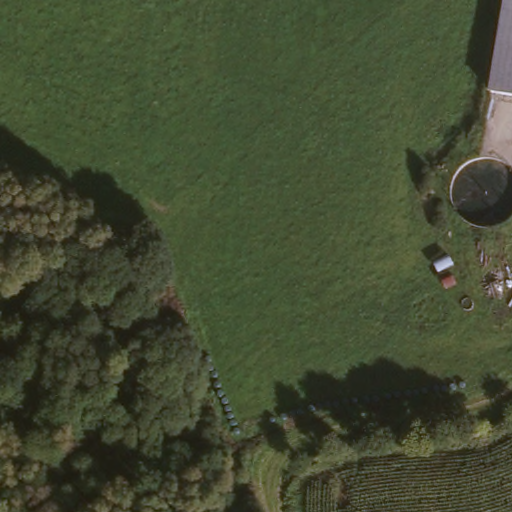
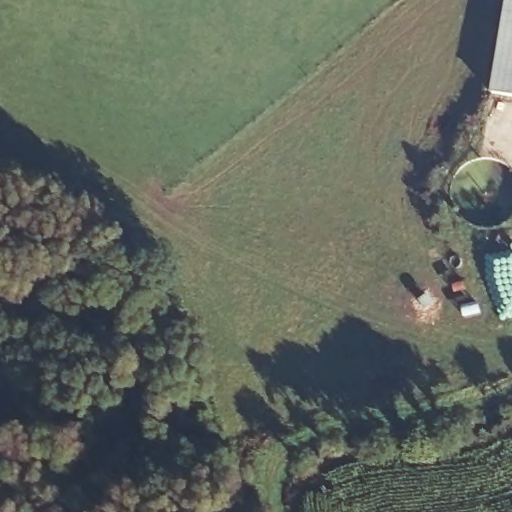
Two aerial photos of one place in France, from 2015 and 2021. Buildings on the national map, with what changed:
unchanged [(496,98),(507,0),(512,0),(512,100),(496,98)]

